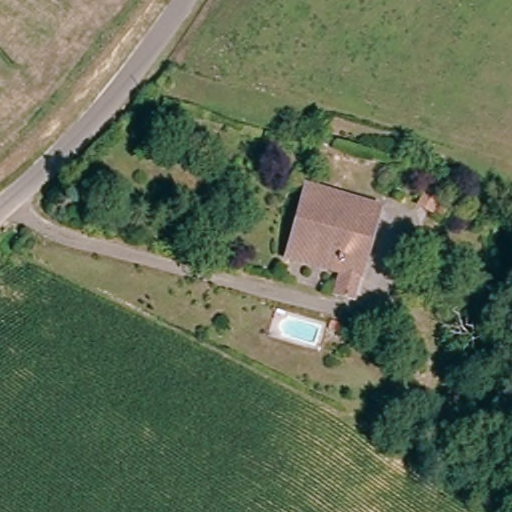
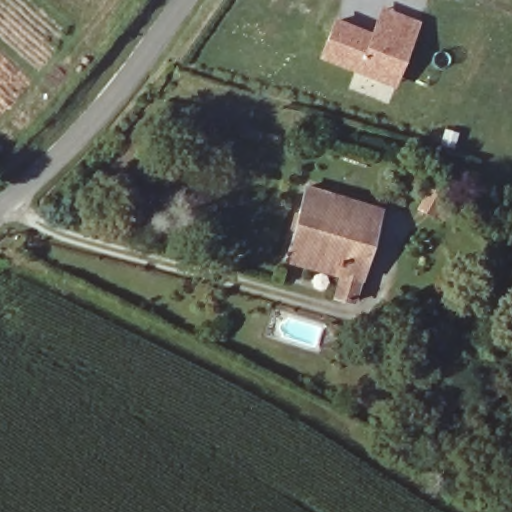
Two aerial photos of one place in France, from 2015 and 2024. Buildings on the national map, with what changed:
new [(378,77),(318,52),(333,16),(371,31),(382,5),(417,20),(412,34),(398,66),(392,82),(378,77)]
unchanged [(286,254),(307,183),(374,208),(353,277),(348,298),(329,294),(335,271),(286,254)]
new [(441,221),(432,215),(418,207),(432,186),(445,195),(453,201),(441,221)]
unchanged [(390,357),(393,343),(403,345),(400,359),(390,357)]

